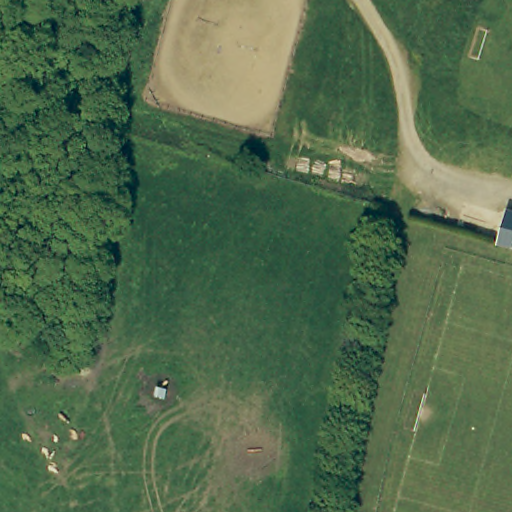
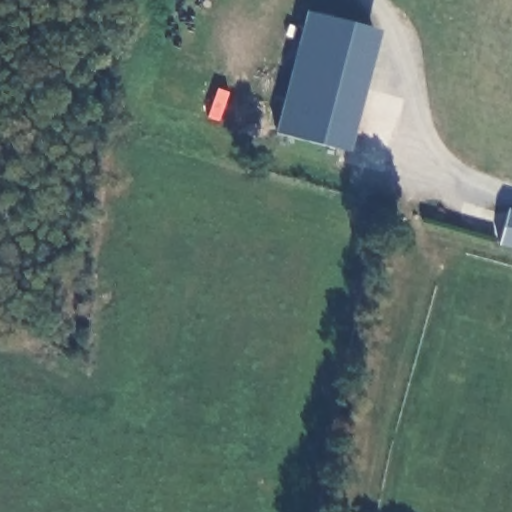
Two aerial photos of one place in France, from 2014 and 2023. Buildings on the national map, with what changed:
new [(380,32),(348,152),(276,132),(305,12),(380,32)]
unchanged [(507,210),(512,211),(512,249),(497,246),(507,210)]

